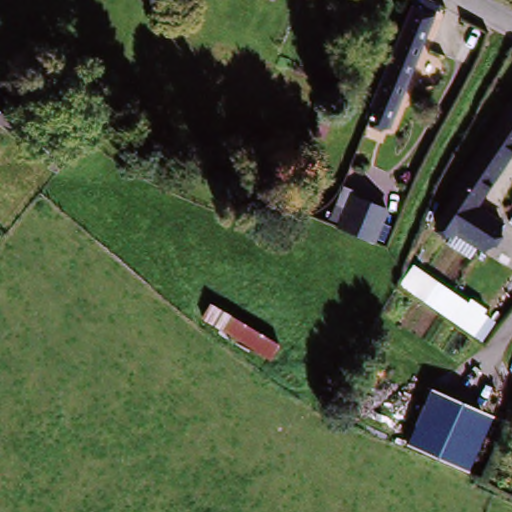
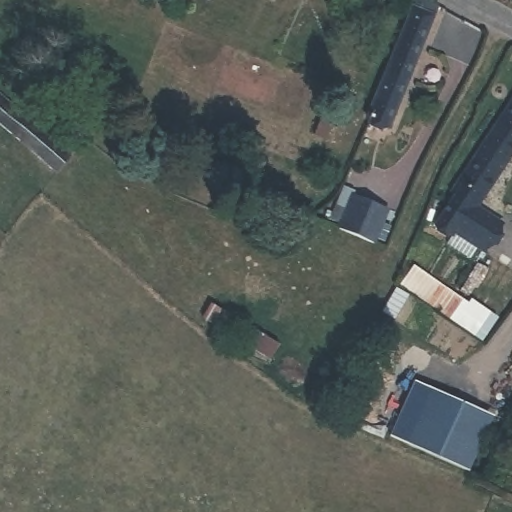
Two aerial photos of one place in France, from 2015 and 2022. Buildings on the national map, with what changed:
unchanged [(437,21),(387,130),(359,117),(409,8),(437,21)]
unchanged [(512,110),(512,161),(479,207),(463,196),(459,193),(512,110)]
unchanged [(511,230),(491,259),(459,237),(457,242),(440,231),(463,196),(479,207),(511,230)]
unchanged [(359,201),(394,216),(380,248),(367,242),(363,240),(346,233),(359,201)]
unchanged [(456,332),(405,287),(415,274),(422,264),(474,310),(469,317),(456,332)]
unchanged [(269,356),(199,321),(208,304),(278,339),(269,356)]
unchanged [(424,454),(449,400),(464,408),(484,418),(461,472),(424,454)]

